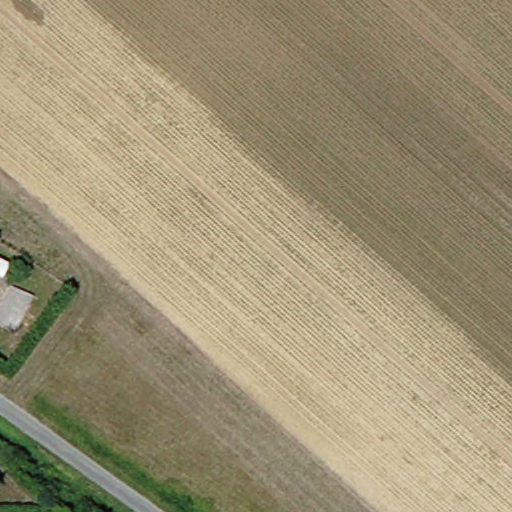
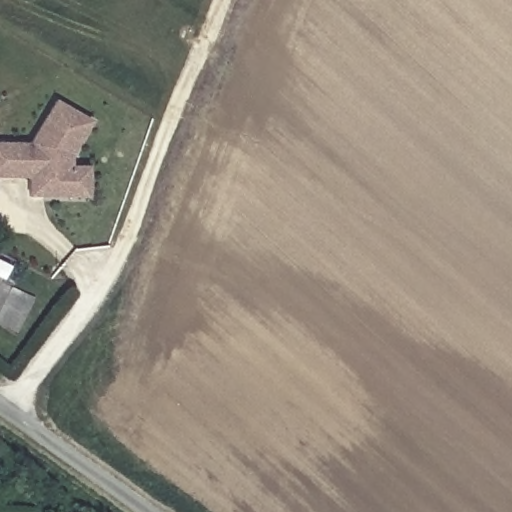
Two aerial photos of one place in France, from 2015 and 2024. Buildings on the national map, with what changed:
new [(76,198),(35,197),(35,178),(27,177),(0,177),(0,142),(37,145),(62,99),(97,123),(77,157),(77,168),(95,168),(93,198),(76,198)]

